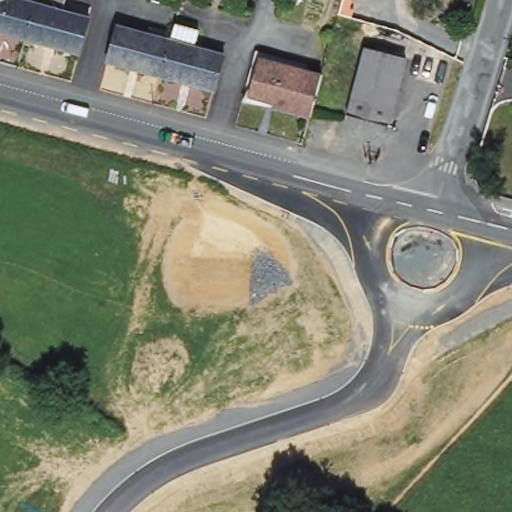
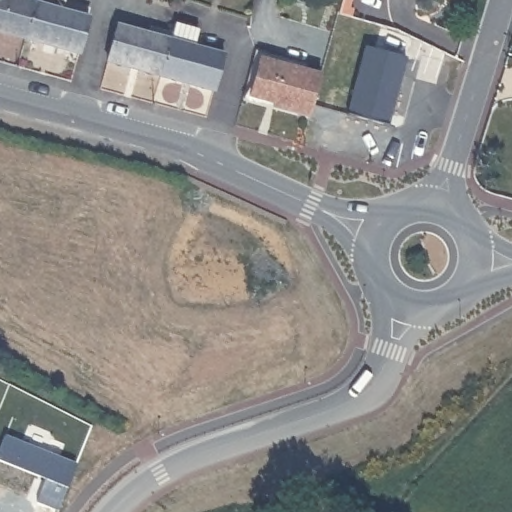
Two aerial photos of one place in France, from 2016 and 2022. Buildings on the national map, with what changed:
unchanged [(0,33),(0,0),(40,0),(28,41),(0,33)]
unchanged [(65,11),(91,18),(82,56),(28,41),(40,0),(67,0),(65,11)]
unchanged [(160,75),(110,61),(119,26),(169,40),(160,75)]
unchanged [(215,90),(160,75),(169,40),(224,54),(215,90)]
unchanged [(388,127),(347,114),(366,49),(406,60),(388,127)]
unchanged [(272,111),(272,107),(249,100),(244,98),(254,61),(260,62),(322,79),(309,122),(272,111)]
new [(79,461),(65,497),(43,488),(48,476),(0,456),(0,449),(7,433),(79,461)]

